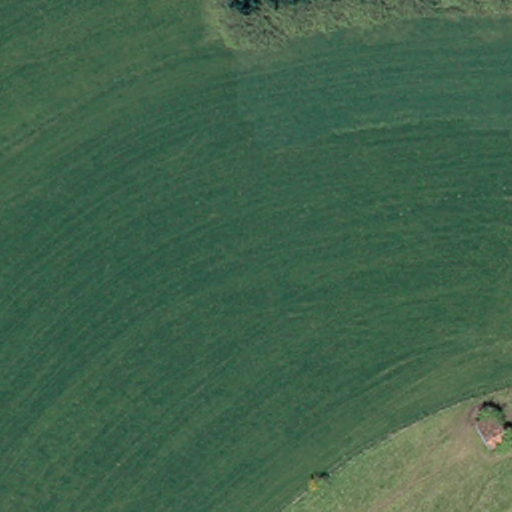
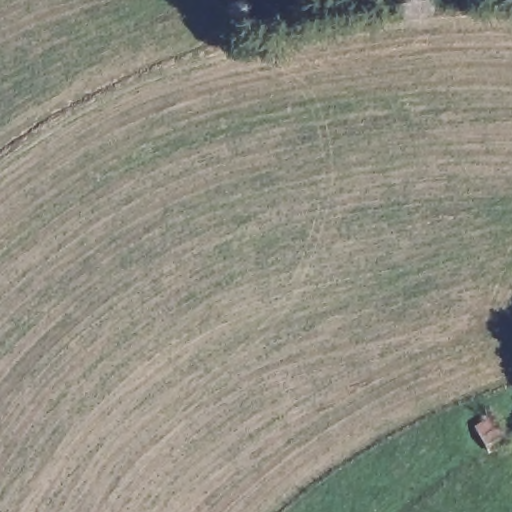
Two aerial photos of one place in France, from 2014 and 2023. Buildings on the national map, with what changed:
unchanged [(469,419),(492,407),(507,438),(486,447),(469,419)]

